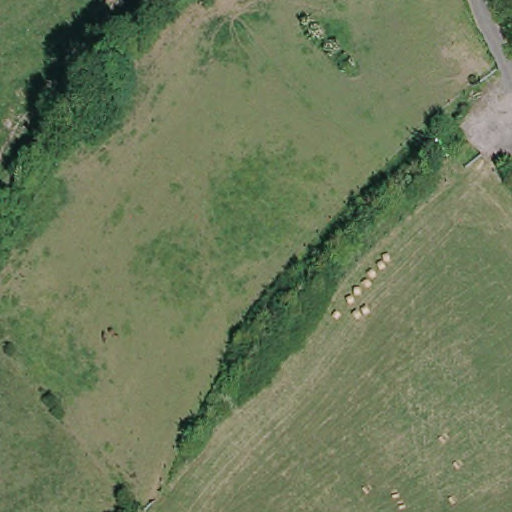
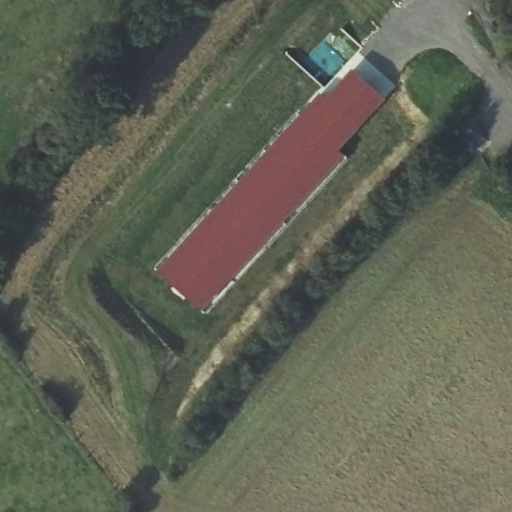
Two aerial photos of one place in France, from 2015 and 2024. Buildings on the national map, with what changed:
new [(306,191),(310,194),(209,305),(205,302),(198,309),(157,272),(321,94),(326,99),(353,69),(388,101),(306,191)]

